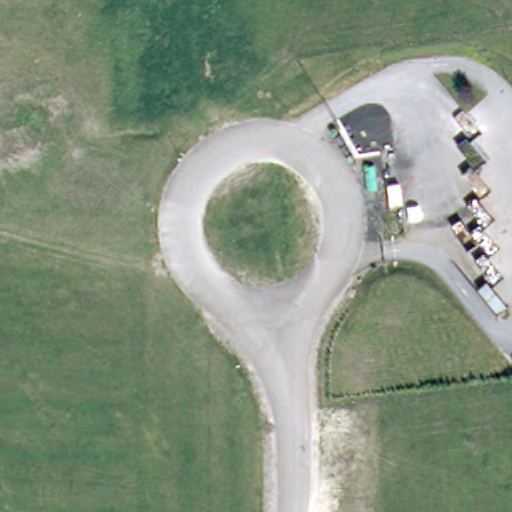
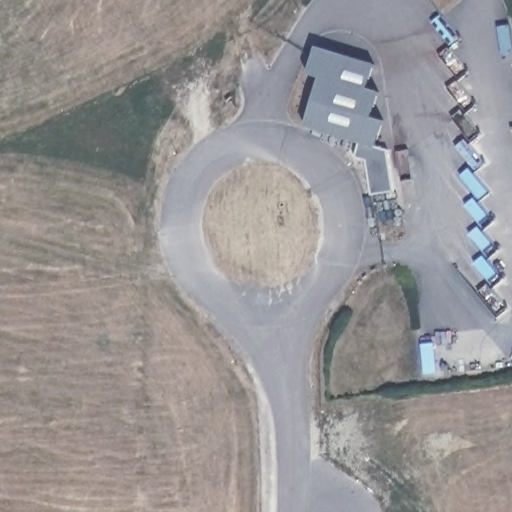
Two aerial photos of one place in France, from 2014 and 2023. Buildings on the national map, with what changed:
new [(388,149),(394,191),(372,194),(367,161),(357,156),(361,143),(306,127),(320,78),(308,74),(317,46),(375,64),(368,88),(380,91),(372,116),(385,120),(377,145),(388,149)]

